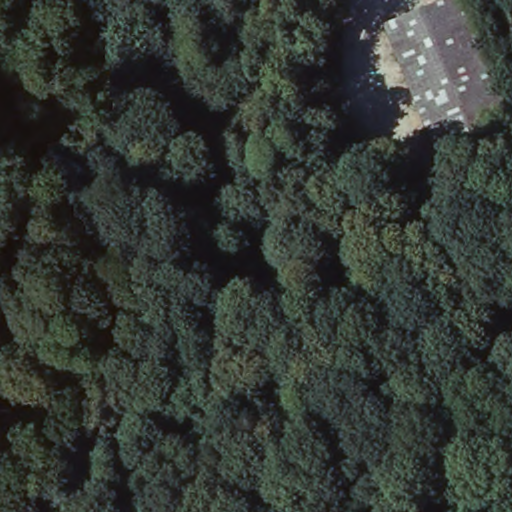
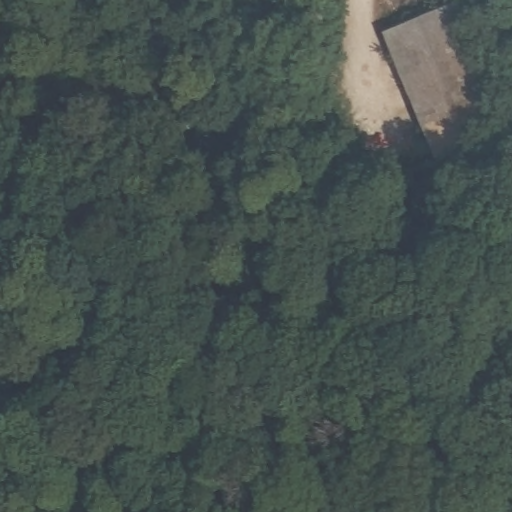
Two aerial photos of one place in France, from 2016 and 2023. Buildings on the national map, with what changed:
unchanged [(458,6),(512,141),(512,143),(441,171),(386,35),(458,6)]
unchanged [(352,123),(355,157),(322,161),(316,130),(352,123)]

